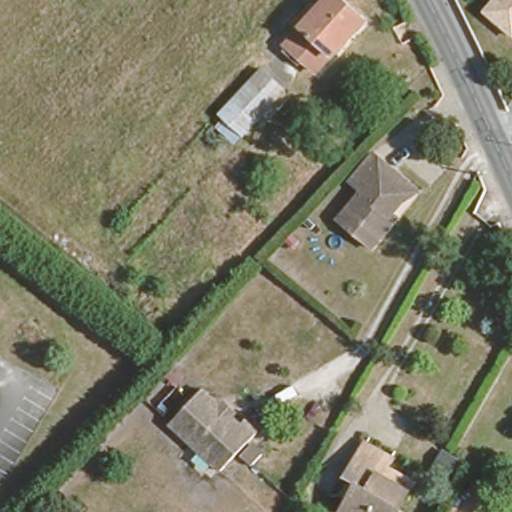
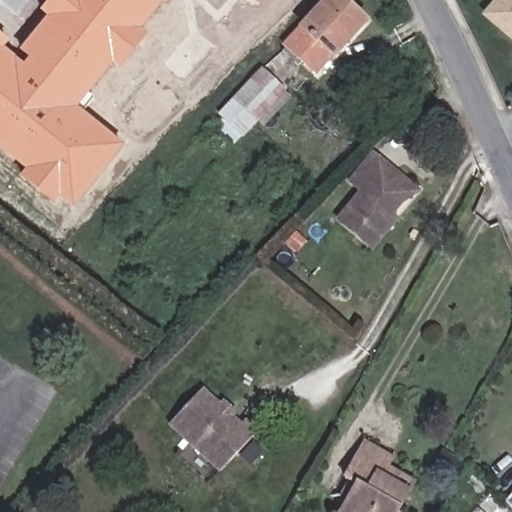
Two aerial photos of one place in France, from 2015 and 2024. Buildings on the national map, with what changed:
new [(73,208),(60,197),(54,204),(19,176),(25,169),(0,149),(0,33),(9,41),(5,47),(25,64),(29,59),(19,50),(47,16),(40,10),(49,0),(165,0),(141,29),(148,35),(121,69),(113,63),(78,106),(125,144),(73,208)]
new [(258,5),(252,0),(262,0),(258,5)]
unchanged [(328,50),(312,67),(285,42),(322,0),(347,0),(363,15),(331,53),(328,50)]
unchanged [(493,0),(512,0),(512,37),(482,12),(493,0)]
unchanged [(218,116),(262,68),(284,87),(242,135),(218,116)]
unchanged [(418,184),(393,207),(397,215),(369,247),(334,217),(354,178),(343,174),(367,144),(418,184)]
unchanged [(201,386),(220,404),(226,397),(234,405),(228,412),(238,422),(244,416),(258,427),(223,468),(170,420),(201,386)]
unchanged [(347,469),(364,434),(398,451),(391,466),(413,478),(397,512),(343,512),(361,475),(347,469)]

